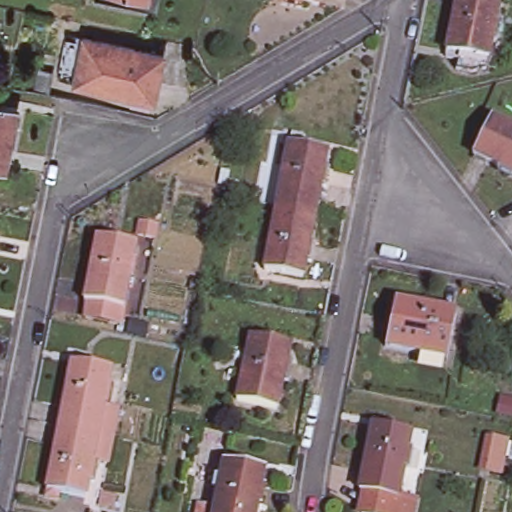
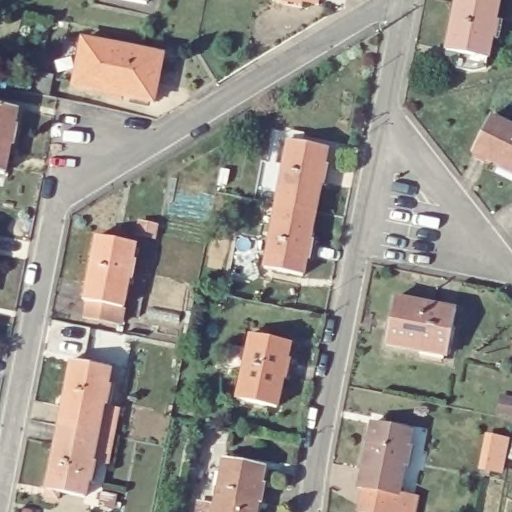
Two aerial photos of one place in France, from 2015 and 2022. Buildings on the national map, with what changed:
unchanged [(320,5),(303,2),(301,8),(283,5),(284,0),(321,0),(320,5)]
unchanged [(475,74),(458,70),(462,51),(449,48),(458,0),(501,0),(490,57),(488,67),(475,74)]
unchanged [(164,56),(155,103),(75,87),(85,41),(164,56)]
unchanged [(51,84),(48,99),(32,96),(35,81),(51,84)]
unchanged [(11,169),(0,167),(0,102),(24,107),(11,169)]
unchanged [(512,125),(512,169),(471,149),(489,113),(512,125)]
unchanged [(289,138),(291,127),(301,129),(299,140),(325,145),(320,162),(327,163),(324,181),(317,180),(312,208),(275,201),(287,137),(289,138)]
unchanged [(312,208),(306,237),(312,238),(308,258),(303,256),(300,272),(261,265),(275,201),(312,208)]
unchanged [(85,318),(88,303),(85,302),(98,238),(136,246),(123,310),(120,326),(85,318)]
unchanged [(452,308),(443,353),(383,342),(392,296),(452,308)]
unchanged [(291,343),(288,360),(295,361),(290,380),(284,379),(278,409),(239,401),(252,334),(291,343)]
unchanged [(106,371),(103,388),(110,389),(106,408),(99,406),(93,435),(55,427),(68,363),(106,371)]
unchanged [(357,484),(370,420),(408,429),(395,490),(395,492),(365,486),(357,484)]
unchanged [(93,435),(88,462),(95,464),(91,484),(85,483),(80,499),(42,491),(55,427),(93,435)]
unchanged [(510,440),(512,441),(512,461),(508,460),(502,475),(476,470),(482,434),(510,440)]
unchanged [(261,462),(258,478),(264,480),(260,499),(255,498),(252,512),(211,512),(222,454),(261,462)]
unchanged [(395,490),(409,493),(406,512),(379,512),(360,508),(365,486),(395,492),(395,490)]

